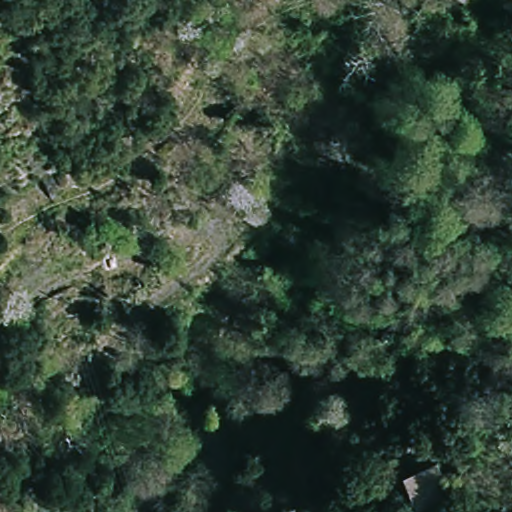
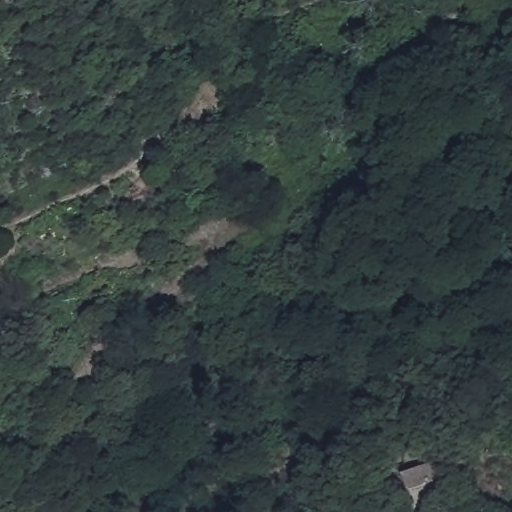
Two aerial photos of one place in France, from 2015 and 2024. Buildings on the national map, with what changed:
unchanged [(413,509),(400,476),(435,462),(448,497),(413,509)]

